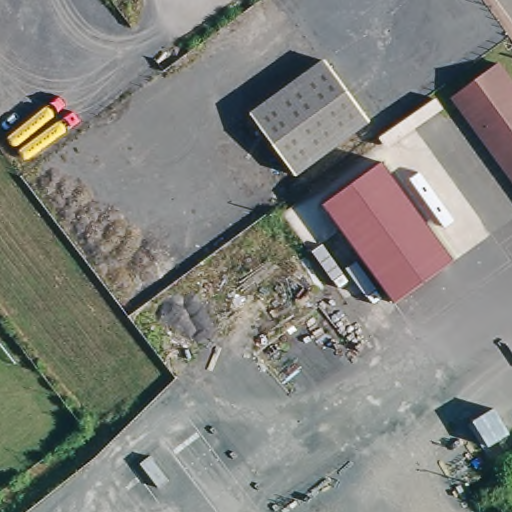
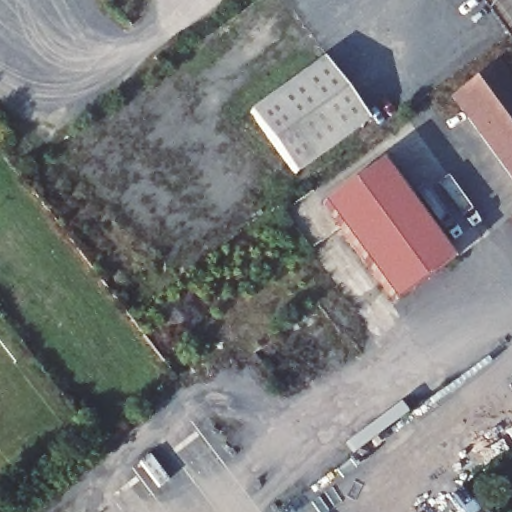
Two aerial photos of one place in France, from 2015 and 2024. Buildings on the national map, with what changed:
unchanged [(255,111),(327,60),(370,120),(300,173),(255,111)]
unchanged [(512,86),(512,182),(451,98),(457,94),(497,65),(512,86)]
unchanged [(435,237),(454,263),(422,286),(394,307),(373,278),(321,207),(381,163),(435,237)]

